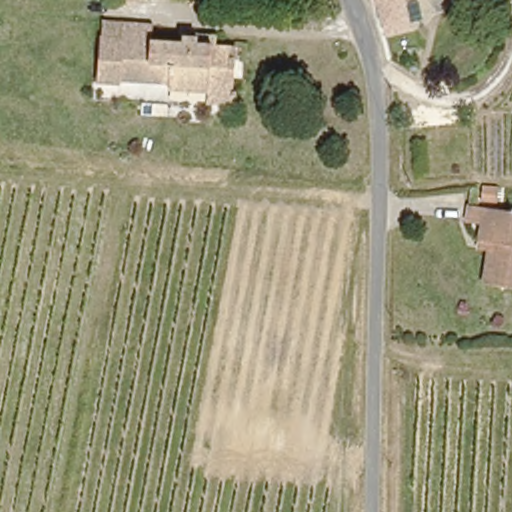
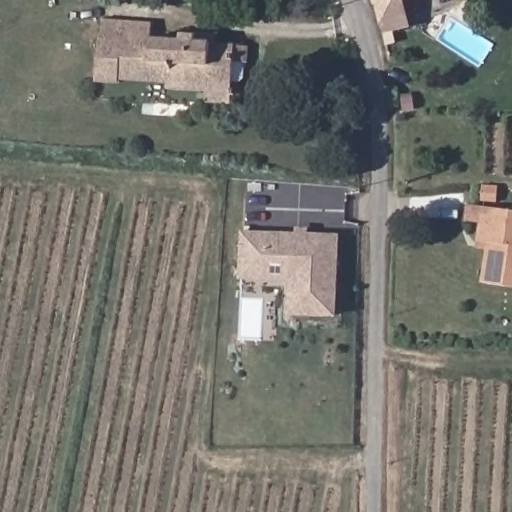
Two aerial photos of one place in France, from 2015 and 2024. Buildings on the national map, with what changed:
unchanged [(409,22),(386,27),(379,0),(405,0),(409,22)]
unchanged [(206,104),(206,91),(169,89),(169,82),(143,80),(142,103),(95,99),(100,40),(100,36),(101,35),(101,19),(151,23),(151,37),(181,40),(182,34),(195,35),(195,31),(215,33),(214,42),(214,45),(234,46),(232,88),(234,88),(233,96),(231,96),(230,106),(206,104)]
unchanged [(512,210),(512,284),(487,281),(493,240),(483,239),(488,206),(512,210)]
new [(241,280),(243,231),(341,234),(339,317),(290,317),(292,281),(241,280)]

